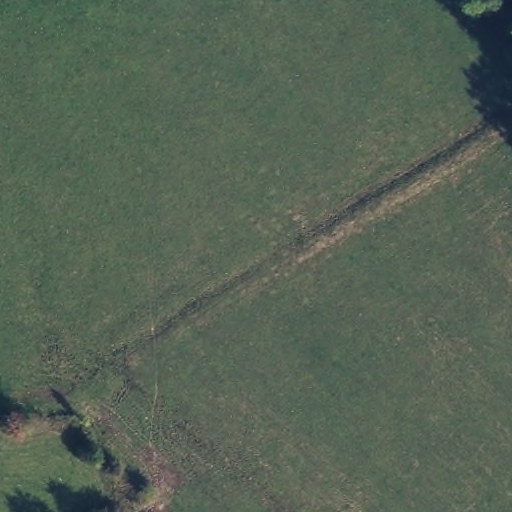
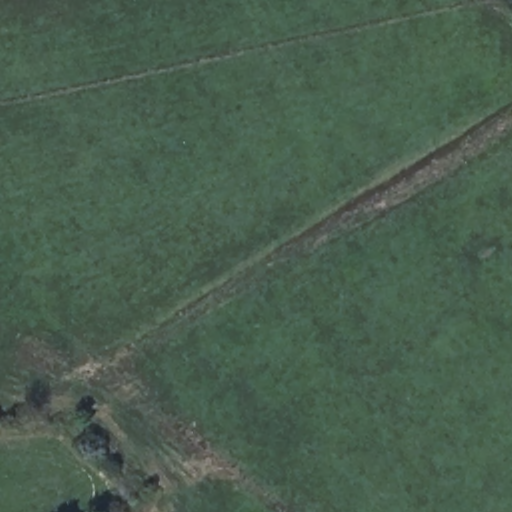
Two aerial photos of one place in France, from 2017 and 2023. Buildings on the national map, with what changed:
[]

